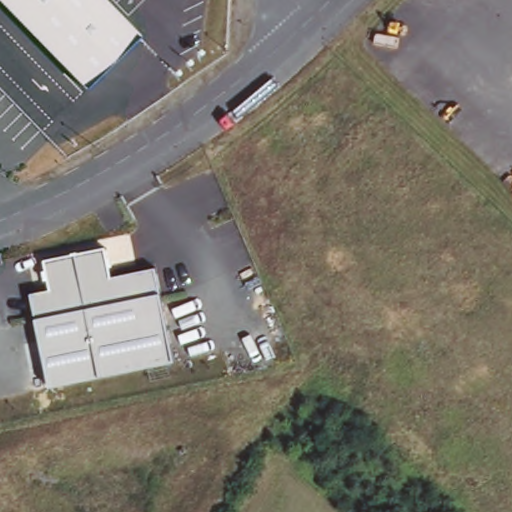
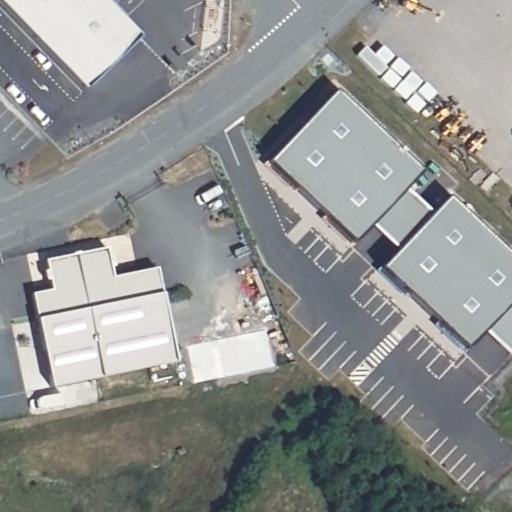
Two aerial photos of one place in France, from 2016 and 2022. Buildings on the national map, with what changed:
unchanged [(0,0),(102,0),(137,35),(82,90),(0,9),(0,0)]
new [(300,190),(297,194),(268,166),(271,163),(340,89),(427,172),(410,189),(376,226),(359,244),(356,248),(326,220),(329,217),(300,190)]
new [(410,189),(435,214),(401,250),(376,226),(410,189)]
new [(413,296),(410,299),(381,272),(385,269),(401,250),(435,214),(453,196),(512,252),(512,308),(489,333),(472,351),(469,354),(440,327),(443,324),(413,296)]
unchanged [(33,294),(51,289),(45,263),(106,249),(111,277),(157,269),(174,362),(51,388),(33,294)]
new [(512,308),(512,354),(489,333),(512,308)]

